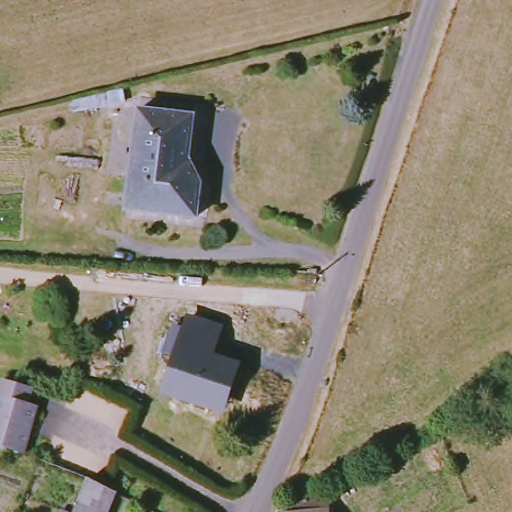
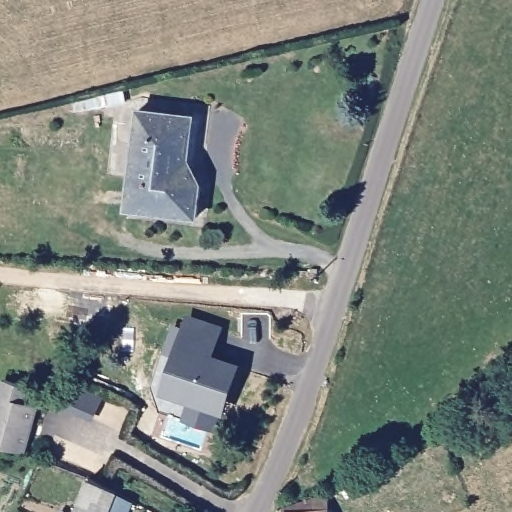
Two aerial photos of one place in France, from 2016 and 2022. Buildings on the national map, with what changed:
unchanged [(192,182),(208,184),(205,217),(135,209),(146,109),(202,115),(192,182)]
unchanged [(224,415),(161,397),(173,357),(164,353),(172,325),(182,326),(186,315),(224,326),(215,354),(241,361),(224,415)]
unchanged [(35,424),(25,453),(0,445),(0,401),(2,393),(7,380),(33,387),(29,402),(38,406),(32,423),(35,424)]
unchanged [(78,512),(90,480),(116,493),(109,512),(78,512)]
unchanged [(286,512),(286,511),(330,492),(332,512),(286,512)]

